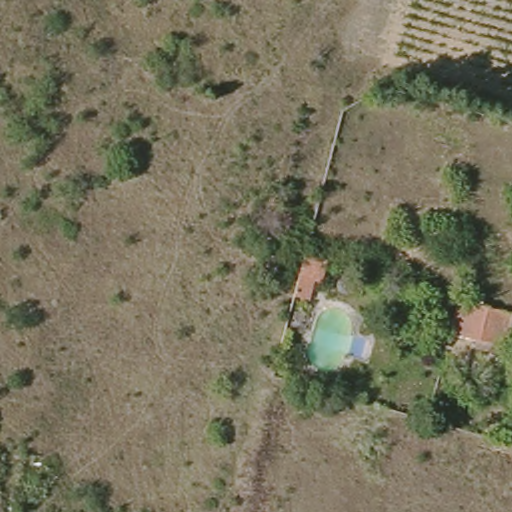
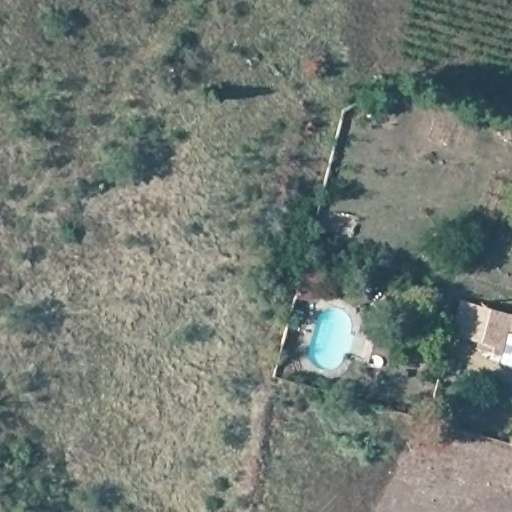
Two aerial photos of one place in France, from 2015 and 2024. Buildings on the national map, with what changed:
unchanged [(295,277),(302,254),(327,261),(320,284),(309,281),(305,300),(290,295),(295,277)]
unchanged [(504,330),(497,355),(471,348),(473,340),(446,333),(457,297),(512,313),(512,333),(504,330)]
unchanged [(507,445),(512,429),(512,447),(507,445)]

